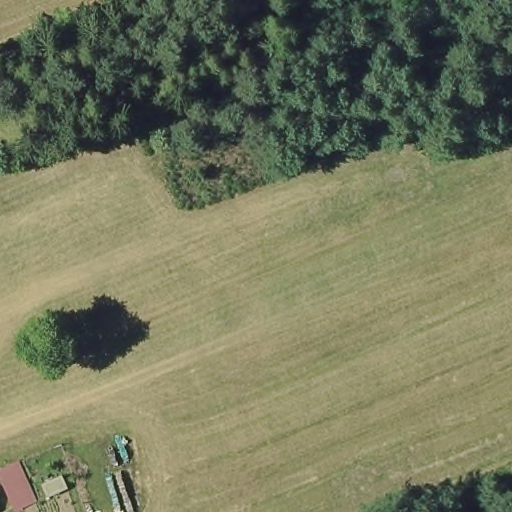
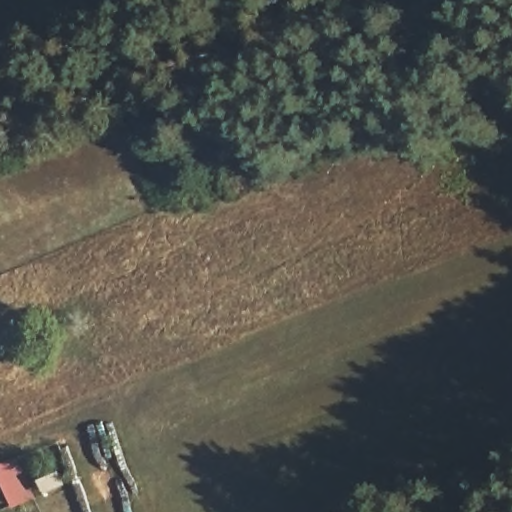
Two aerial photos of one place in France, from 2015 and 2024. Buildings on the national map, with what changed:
unchanged [(0,470),(0,468),(23,458),(41,503),(18,510),(0,470)]

